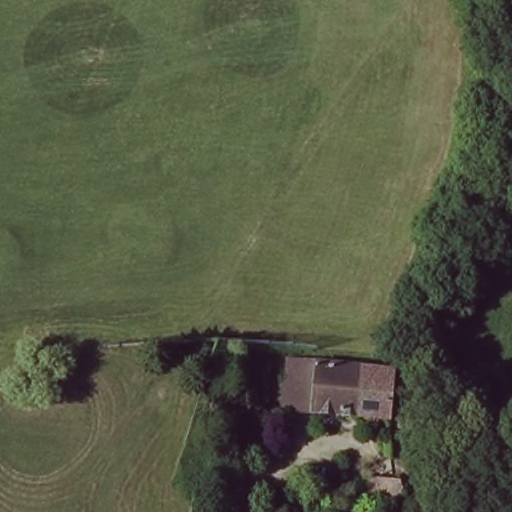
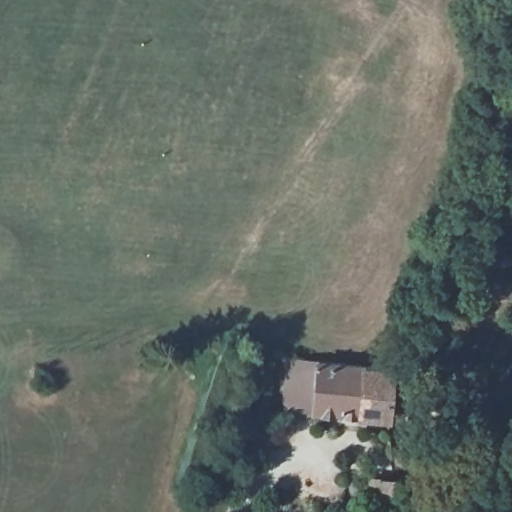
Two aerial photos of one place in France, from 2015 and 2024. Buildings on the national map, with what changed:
unchanged [(296,357),(393,367),(388,419),(291,409),(296,357)]
unchanged [(370,478),(398,481),(403,499),(374,495),(374,499),(369,498),(370,478)]

